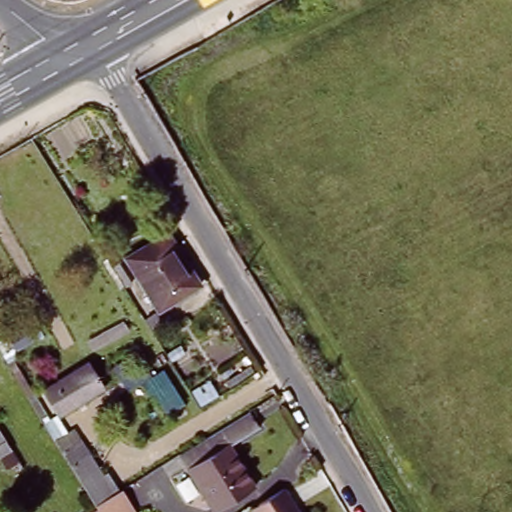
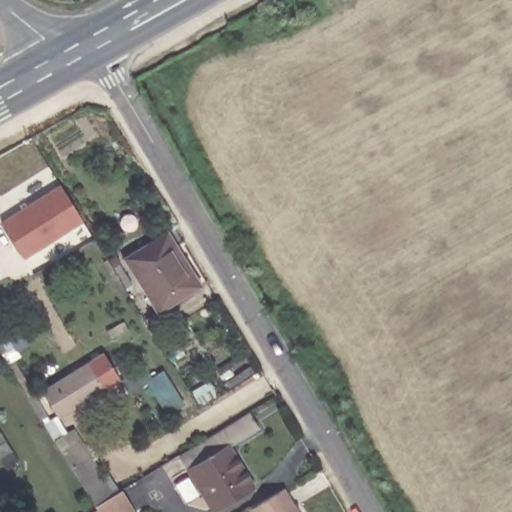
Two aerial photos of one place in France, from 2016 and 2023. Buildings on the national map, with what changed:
new [(61,184),(83,222),(24,258),(2,222),(61,184)]
unchanged [(166,232),(199,287),(163,309),(156,314),(122,259),(129,255),(166,232)]
unchanged [(9,347),(0,333),(14,325),(23,338),(9,347)]
unchanged [(58,420),(43,395),(90,367),(105,392),(58,420)]
unchanged [(228,447),(253,488),(212,512),(208,512),(176,458),(248,413),(257,428),(228,447)]
unchanged [(0,447),(0,430),(8,442),(0,447)]
unchanged [(100,512),(96,506),(62,452),(54,440),(65,433),(73,446),(81,441),(86,448),(82,451),(96,472),(100,470),(103,475),(107,472),(120,491),(115,495),(123,507),(115,512),(100,512)]
unchanged [(292,512),(252,512),(281,494),(292,512)]

